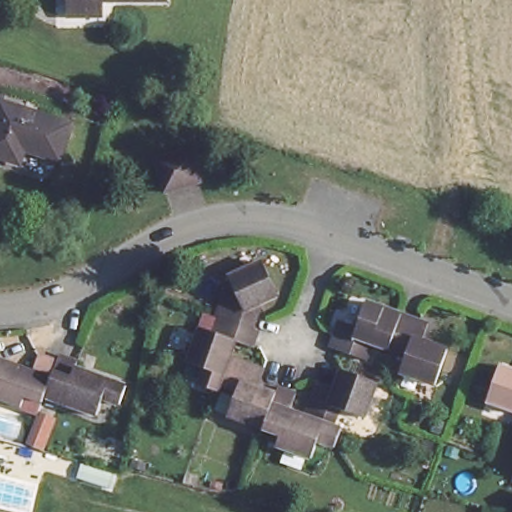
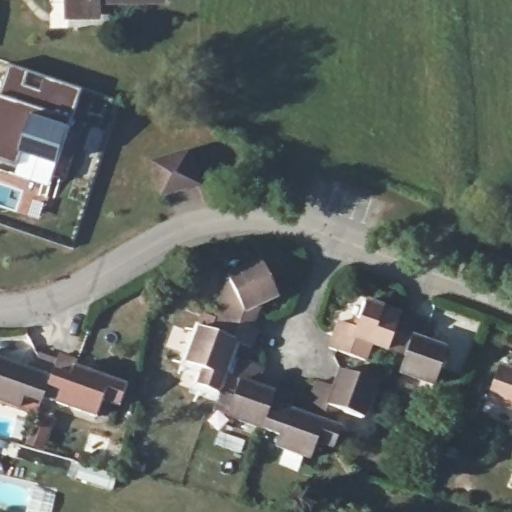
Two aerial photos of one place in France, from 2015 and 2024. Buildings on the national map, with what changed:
unchanged [(64,14),(64,0),(97,0),(98,14),(64,14)]
unchanged [(24,146),(19,161),(0,155),(0,102),(2,96),(72,121),(59,158),(24,146)]
unchanged [(177,154),(190,150),(199,182),(181,188),(164,193),(154,160),(172,155),(177,154)]
unchanged [(277,291),(253,303),(256,310),(252,322),(216,310),(229,276),(228,273),(260,258),(277,291)]
unchanged [(399,367),(405,351),(371,339),(365,356),(330,343),(339,317),(357,324),(366,298),(400,310),(427,320),(421,336),(447,345),(434,380),(399,367)]
unchanged [(257,324),(251,342),(234,337),(228,353),(219,379),(216,387),(198,381),(204,365),(187,358),(200,324),(210,327),(216,310),(252,322),(257,324)]
unchanged [(263,365),(263,366),(257,383),(274,389),(262,424),(226,411),(236,385),(219,379),(228,353),(263,365)]
unchanged [(97,413),(43,396),(41,402),(24,397),(20,406),(0,400),(0,362),(32,372),(38,355),(56,361),(58,355),(58,354),(77,361),(76,367),(124,382),(119,401),(102,396),(97,413)]
unchanged [(374,378),(362,412),(336,403),(331,420),(304,413),(305,411),(317,377),(333,381),(340,366),(374,378)]
unchanged [(481,401),(494,366),(512,372),(512,412),(481,401)]
unchanged [(276,383),(286,386),(290,387),(294,388),(288,406),(305,411),(304,413),(331,420),(340,424),(333,443),(315,436),(310,452),(275,440),(279,429),(262,424),(274,389),(276,383)]

